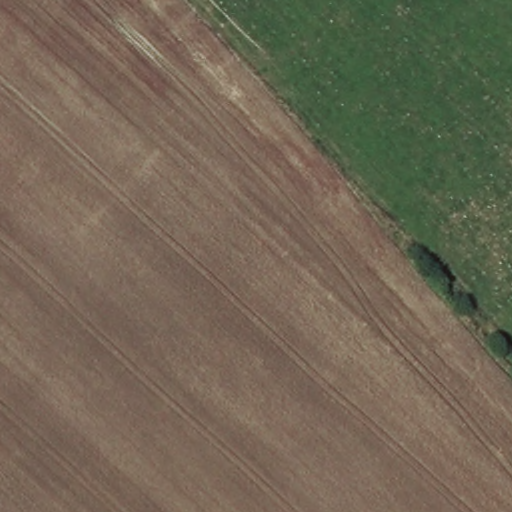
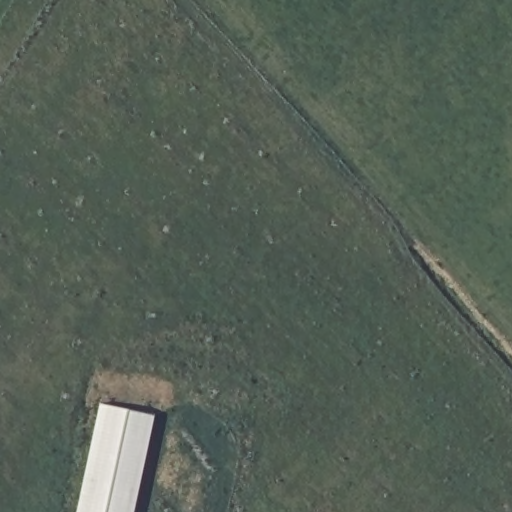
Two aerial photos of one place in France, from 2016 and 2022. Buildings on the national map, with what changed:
new [(152,415),(131,512),(75,512),(98,404),(152,415)]

